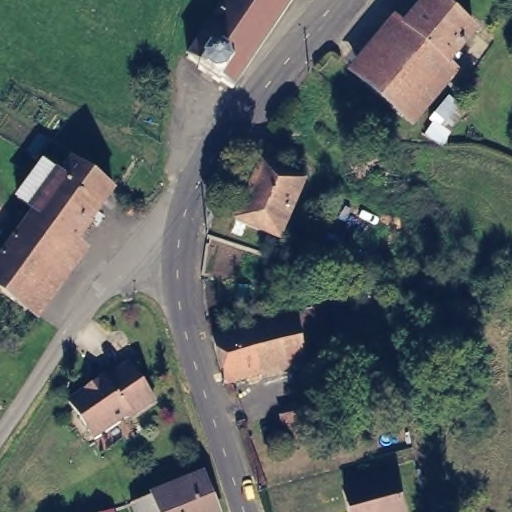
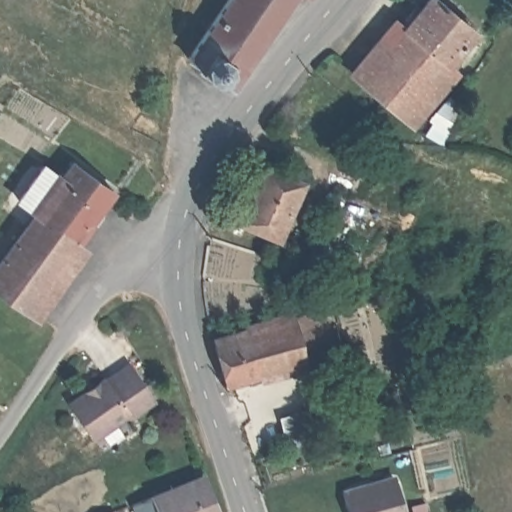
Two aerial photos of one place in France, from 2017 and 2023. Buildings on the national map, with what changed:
unchanged [(294,0),(232,92),(188,60),(230,0),(294,0)]
unchanged [(308,0),(311,0),(310,1),(308,0)]
unchanged [(437,0),(480,37),(407,121),(367,85),(437,0)]
unchanged [(410,179),(392,207),(348,181),(365,154),(410,179)]
unchanged [(65,180),(77,165),(117,192),(32,310),(0,288),(0,270),(40,215),(21,201),(47,166),(65,180)]
unchanged [(305,186),(279,244),(235,226),(262,169),(305,186)]
unchanged [(326,305),(339,351),(312,358),(299,312),(326,305)]
unchanged [(299,312),(312,358),(263,371),(264,377),(254,380),(252,373),(230,380),(217,335),(299,312)]
unchanged [(107,371),(108,374),(132,357),(157,393),(132,410),(130,407),(97,431),(72,396),(107,371)]
unchanged [(307,410),(315,440),(290,447),(281,417),(307,410)]
unchanged [(394,479),(403,512),(349,512),(344,493),(394,479)]
unchanged [(221,512),(138,512),(135,503),(208,480),(221,512)]
unchanged [(112,512),(104,512),(111,510),(112,512)]

